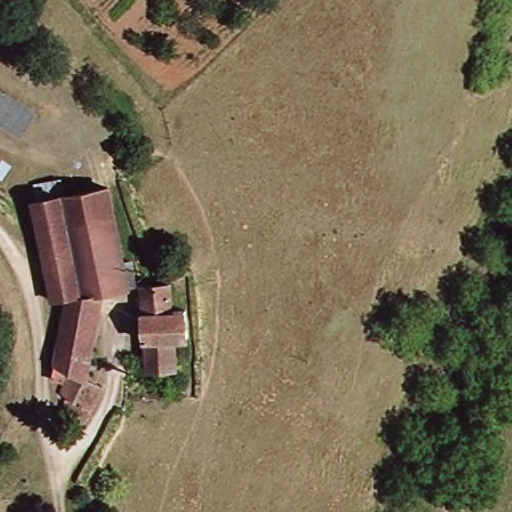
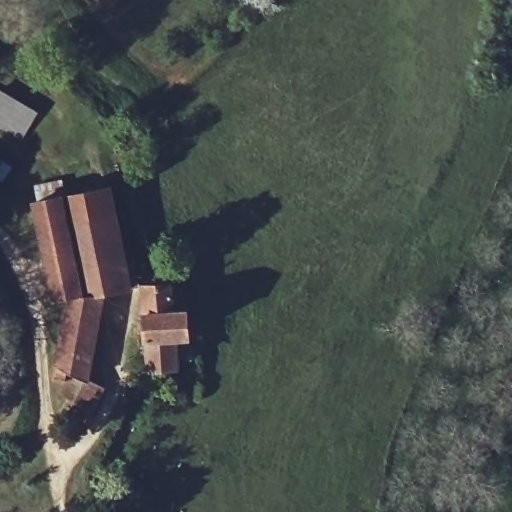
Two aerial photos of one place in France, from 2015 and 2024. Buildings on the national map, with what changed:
unchanged [(28,137),(0,121),(0,88),(42,111),(28,137)]
unchanged [(9,178),(0,173),(0,154),(17,164),(9,178)]
unchanged [(137,285),(112,288),(97,373),(107,382),(87,418),(75,410),(79,399),(65,389),(69,377),(58,371),(72,296),(58,296),(40,197),(112,183),(137,285)]
unchanged [(180,311),(193,310),(197,337),(182,339),(183,366),(155,367),(150,286),(178,285),(180,311)]

